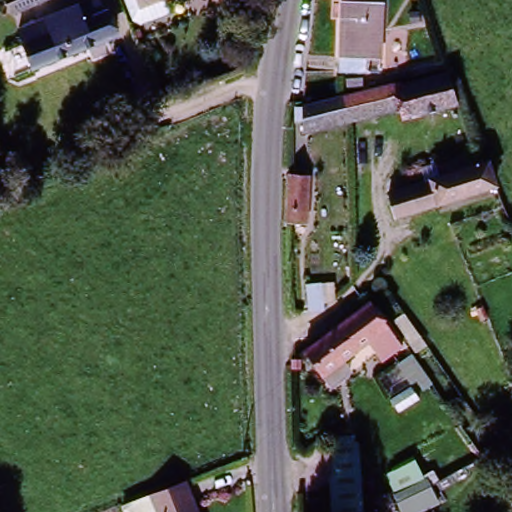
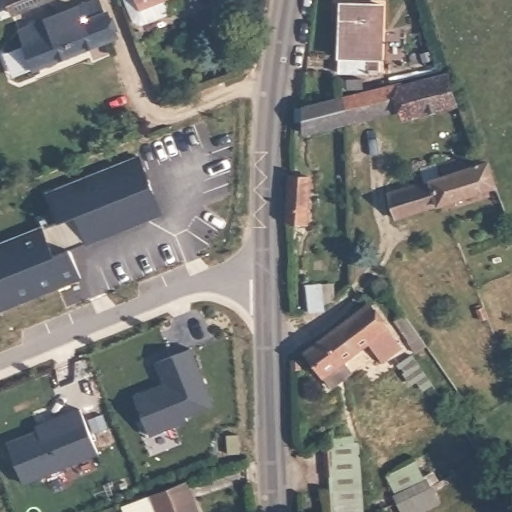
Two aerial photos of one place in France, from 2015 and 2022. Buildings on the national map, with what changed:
unchanged [(28,42),(24,32),(101,0),(103,0),(119,38),(13,80),(3,53),(28,42)]
unchanged [(13,14),(7,0),(47,0),(13,14)]
unchanged [(140,8),(136,0),(159,0),(140,8)]
unchanged [(382,5),(382,59),(379,59),(379,72),(339,71),(341,4),(382,5)]
unchanged [(456,105),(410,116),(407,108),(402,86),(449,73),(456,105)]
unchanged [(402,86),(407,108),(336,125),(311,131),(305,107),(401,83),(402,86)]
unchanged [(387,193),(414,185),(440,177),(437,166),(479,153),(483,164),(487,163),(496,186),(395,217),(387,193)]
new [(58,226),(47,198),(139,162),(162,218),(70,254),(81,282),(0,314),(0,249),(58,226)]
unchanged [(308,176),(306,227),(287,227),(289,175),(308,176)]
unchanged [(331,385),(324,375),(323,377),(306,354),(369,309),(380,324),(385,331),(400,351),(388,360),(372,340),(359,350),(344,361),(351,371),(331,385)]
new [(155,392),(156,394),(165,390),(156,367),(190,353),(211,408),(184,419),(187,425),(149,440),(133,401),(155,392)]
new [(38,436),(36,431),(65,419),(80,414),(97,458),(22,488),(7,448),(67,424),(38,436)]
unchanged [(348,437),(349,443),(356,443),(357,481),(358,512),(327,512),(327,497),(324,439),(348,437)]
new [(238,458),(227,459),(225,441),(236,440),(238,458)]
unchanged [(442,501),(421,512),(403,512),(388,474),(416,459),(442,501)]
unchanged [(186,485),(194,504),(175,512),(125,512),(125,509),(186,485)]
unchanged [(196,512),(175,512),(194,504),(196,512)]

